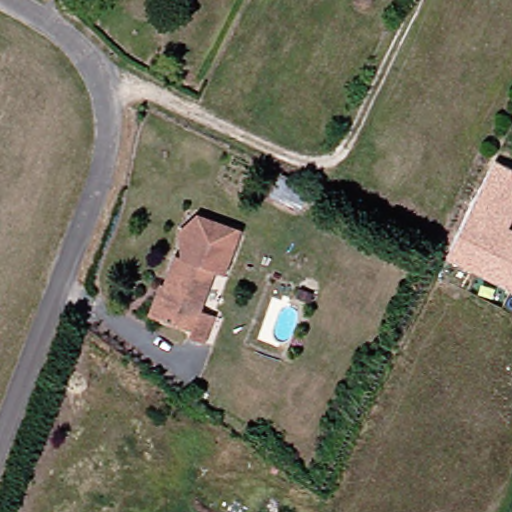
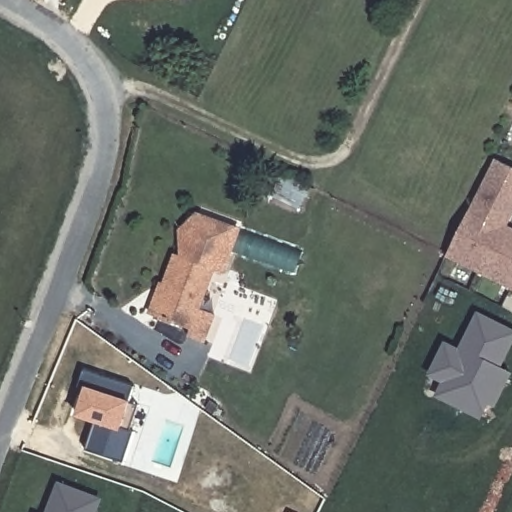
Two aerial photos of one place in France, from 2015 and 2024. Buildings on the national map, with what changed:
unchanged [(447,256),(496,159),(512,168),(512,218),(508,226),(512,228),(512,290),(447,256)]
unchanged [(218,254),(210,277),(201,273),(187,312),(202,317),(193,340),(179,334),(181,328),(146,315),(156,288),(154,288),(165,258),(170,260),(168,234),(175,228),(185,218),(226,233),(218,254)]
new [(442,382),(428,375),(446,341),(460,348),(478,311),(512,328),(512,350),(503,367),(512,372),(512,378),(497,407),(490,404),(482,419),(436,396),(442,382)]
new [(97,423),(77,416),(86,389),(80,387),(86,370),(135,386),(132,402),(140,405),(132,429),(136,430),(125,462),(87,449),(97,423)]
new [(97,500),(93,512),(47,512),(58,484),(97,500)]

